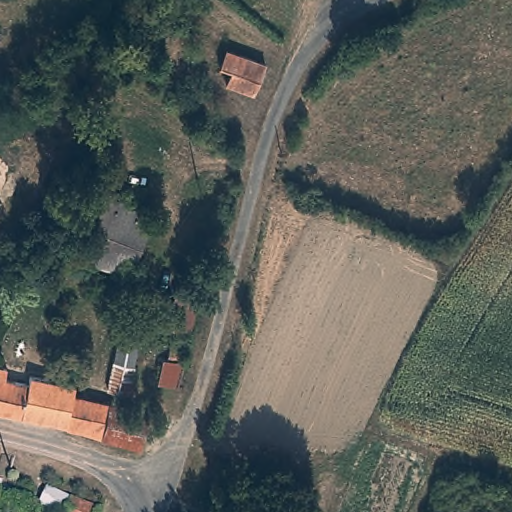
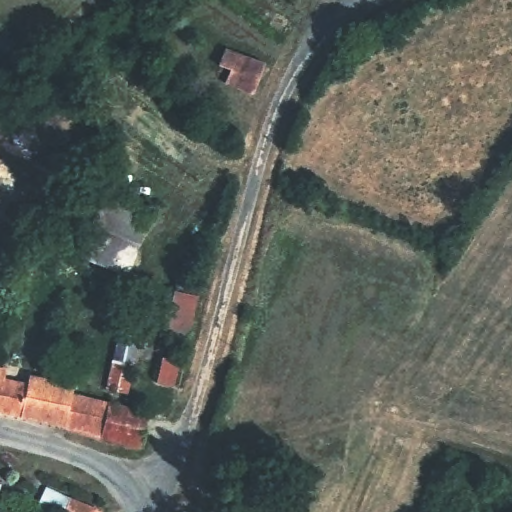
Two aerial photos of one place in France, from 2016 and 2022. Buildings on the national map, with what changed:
unchanged [(260,66),(250,99),(214,87),(219,70),(208,66),(213,51),(260,66)]
unchanged [(0,202),(0,196),(4,199),(0,202)]
unchanged [(150,213),(136,279),(86,269),(99,203),(150,213)]
unchanged [(181,351),(186,352),(180,377),(157,370),(164,346),(181,351)]
unchanged [(136,355),(129,383),(114,380),(120,351),(136,355)]
unchanged [(0,417),(0,384),(29,390),(31,379),(81,392),(79,403),(109,411),(101,443),(0,417)]
unchanged [(149,421),(141,455),(101,443),(109,411),(149,421)]
unchanged [(100,512),(56,512),(34,501),(42,481),(102,508),(100,512)]

